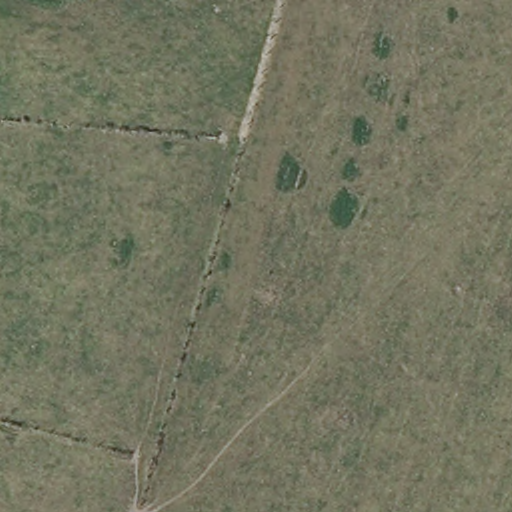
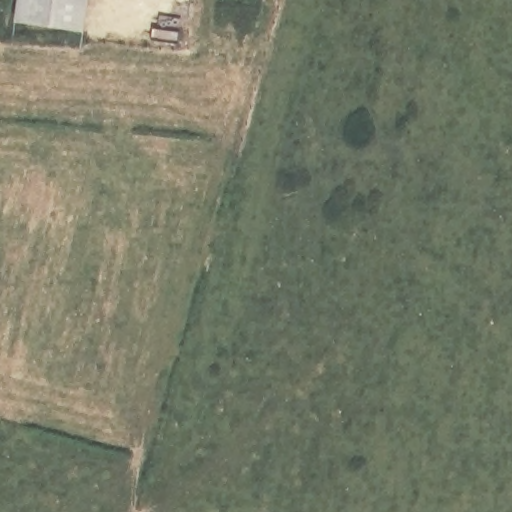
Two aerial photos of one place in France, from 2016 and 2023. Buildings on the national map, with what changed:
new [(14,22),(17,0),(89,0),(84,33),(14,22)]

